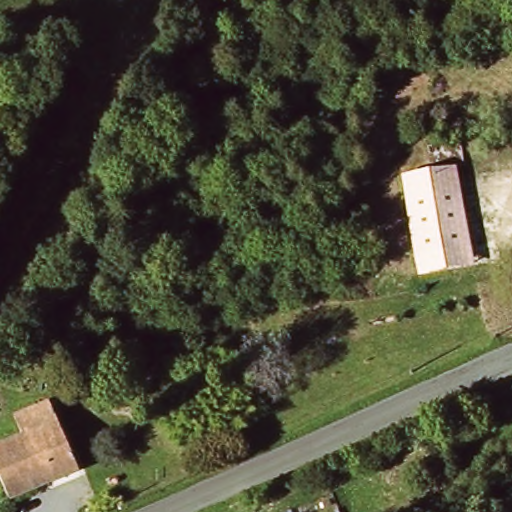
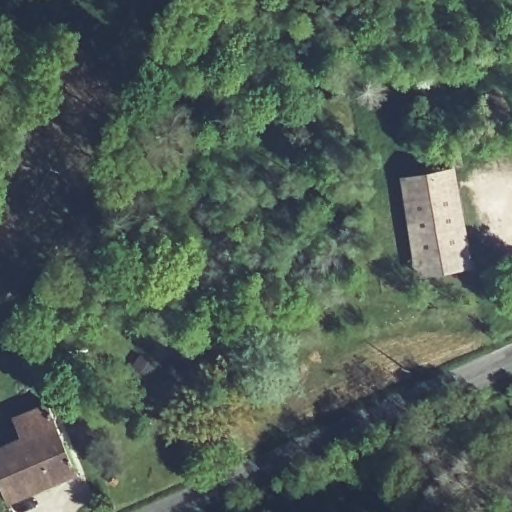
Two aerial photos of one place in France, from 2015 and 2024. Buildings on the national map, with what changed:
unchanged [(468,229),(473,228),(478,260),(429,272),(410,179),(455,171),(468,229)]
unchanged [(23,423),(56,411),(82,474),(20,504),(2,459),(7,455),(0,438),(0,412),(17,412),(23,423)]

